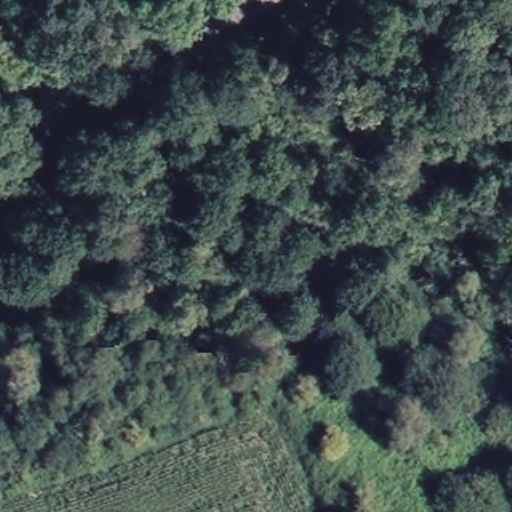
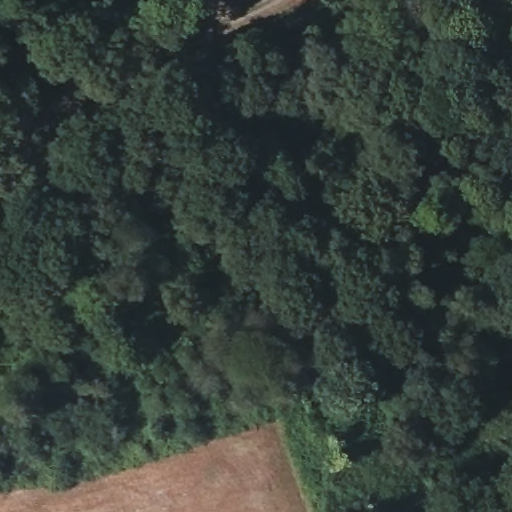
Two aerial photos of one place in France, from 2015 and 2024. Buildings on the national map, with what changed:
[]

